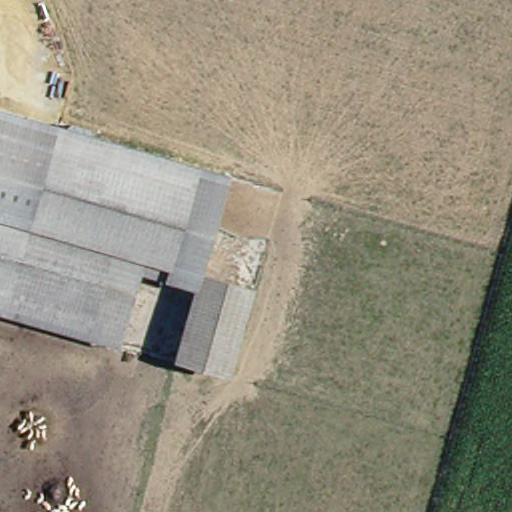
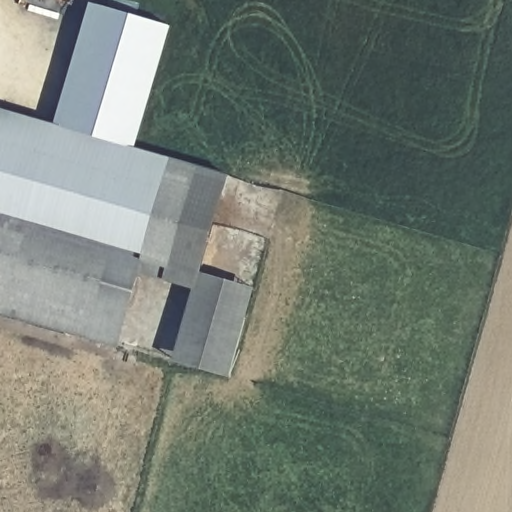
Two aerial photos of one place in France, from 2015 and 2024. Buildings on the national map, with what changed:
new [(138,153),(55,127),(90,2),(172,25),(138,153)]
unchanged [(24,225),(0,217),(0,113),(51,126),(24,225)]
unchanged [(51,126),(201,173),(172,277),(133,268),(136,259),(24,225),(51,126)]
unchanged [(226,179),(197,277),(195,285),(172,277),(201,173),(226,179)]
unchanged [(0,316),(0,236),(22,242),(137,270),(119,345),(0,316)]
unchanged [(200,286),(250,298),(229,386),(178,375),(200,286)]

